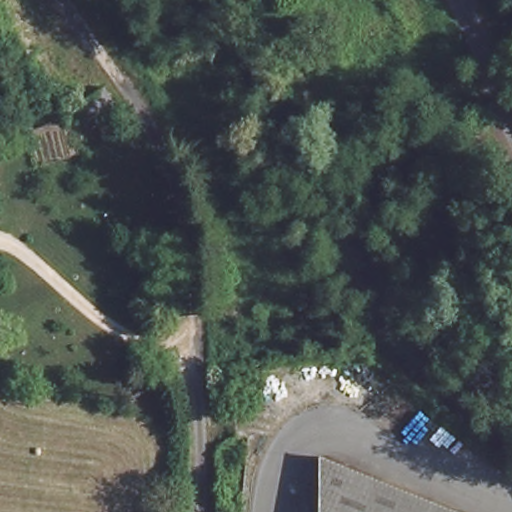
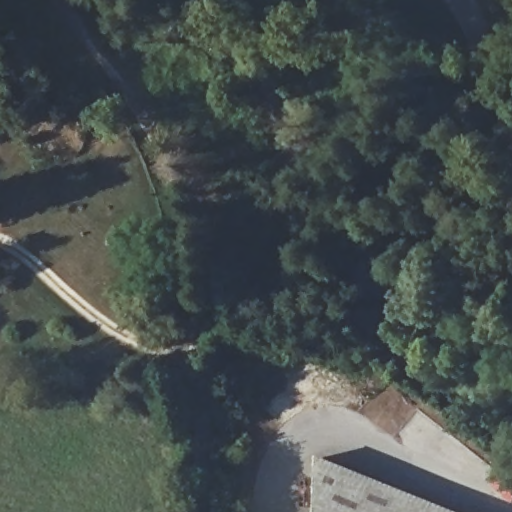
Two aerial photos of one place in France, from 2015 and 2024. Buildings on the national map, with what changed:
unchanged [(82,128),(70,105),(104,86),(116,108),(82,128)]
unchanged [(426,512),(319,512),(321,454),(426,512)]

